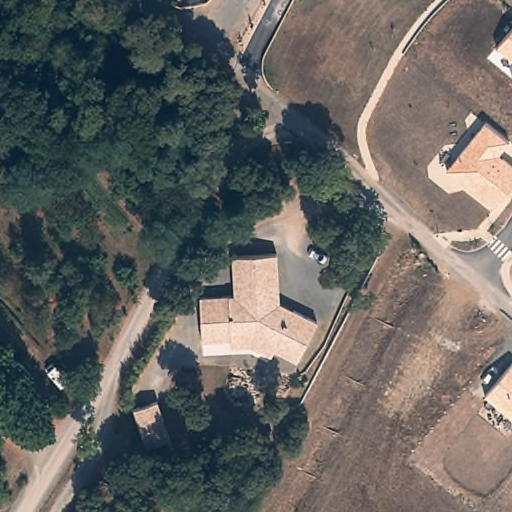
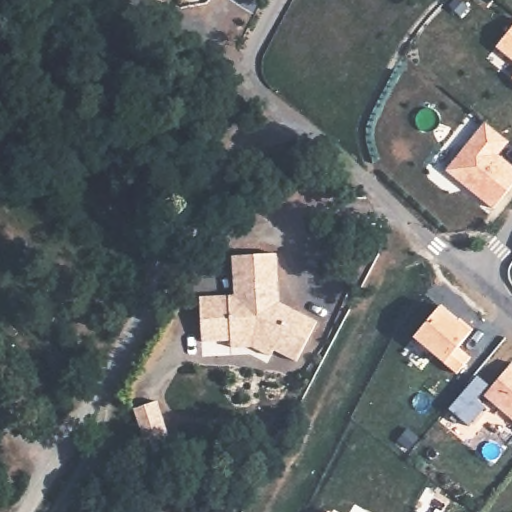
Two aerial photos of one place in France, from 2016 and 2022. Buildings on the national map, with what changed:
unchanged [(495,46),(512,27),(512,60),(495,46)]
unchanged [(492,210),(446,171),(485,121),(510,141),(500,155),(512,165),(512,185),(492,210)]
unchanged [(302,357),(280,345),(276,351),(258,342),(236,343),(237,336),(207,336),(207,292),(241,292),(240,251),(285,250),(286,298),(323,318),(302,357)]
new [(440,306),(472,332),(458,350),(471,357),(456,375),(441,363),(412,337),(440,306)]
unchanged [(485,395),(512,361),(512,420),(485,395)]
unchanged [(150,447),(145,431),(138,409),(161,401),(175,439),(150,447)]
new [(331,512),(327,512),(328,510),(331,512)]

